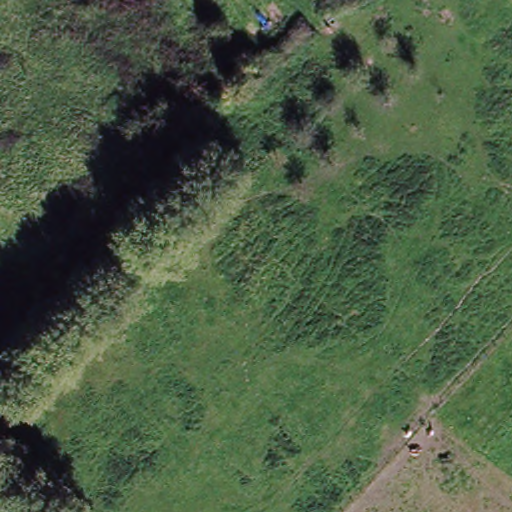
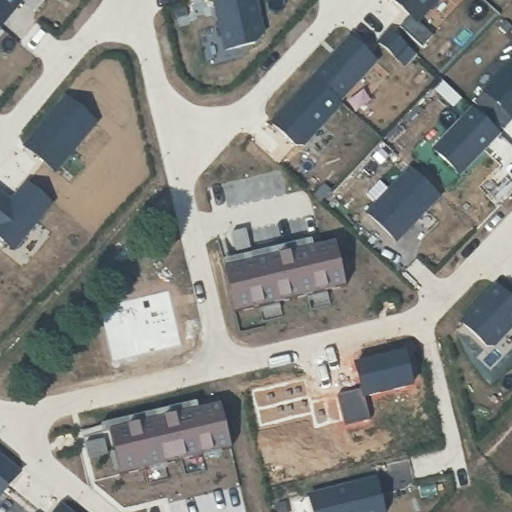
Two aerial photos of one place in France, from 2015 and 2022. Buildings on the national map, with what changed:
new [(10,10),(0,22),(0,0),(22,0),(13,11),(10,10)]
new [(257,40),(229,46),(218,0),(258,0),(265,30),(257,40)]
new [(440,0),(422,20),(401,0),(440,0)]
new [(0,26),(0,22),(2,24),(0,26)]
new [(412,44),(402,56),(383,39),(394,27),(412,44)]
new [(344,99),(317,75),(354,35),(379,59),(344,99)]
new [(512,65),(512,124),(508,129),(479,100),(512,65)]
new [(344,99),(304,143),(295,145),(274,124),(317,75),(344,99)]
new [(69,94),(99,120),(56,170),(26,144),(69,94)]
new [(466,173),(439,148),(479,106),(505,132),(466,173)]
new [(443,197),(398,245),(366,216),(411,168),(443,197)]
new [(0,234),(0,188),(7,194),(5,196),(11,201),(29,180),(54,200),(15,247),(0,234)]
new [(235,230),(249,227),(254,246),(239,250),(235,230)]
new [(315,237),(317,245),(228,267),(225,259),(315,237)]
new [(238,311),(228,267),(339,240),(349,284),(238,311)]
new [(498,345),(491,345),(466,321),(500,284),(512,296),(512,330),(498,345)]
new [(414,383),(365,394),(356,361),(407,351),(414,383)]
new [(305,381),(312,415),(263,426),(254,392),(305,381)]
new [(364,390),(365,394),(371,416),(344,422),(315,429),(312,415),(309,404),(338,397),(364,390)]
new [(202,409),(112,430),(110,422),(199,401),(202,409)]
new [(123,475),(112,430),(224,404),(234,448),(123,475)]
new [(106,438),(110,452),(90,457),(87,442),(106,438)]
new [(0,452),(22,470),(0,496),(0,452)]
new [(387,512),(317,512),(313,495),(379,479),(387,512)]
new [(72,512),(58,512),(64,505),(72,512)]

